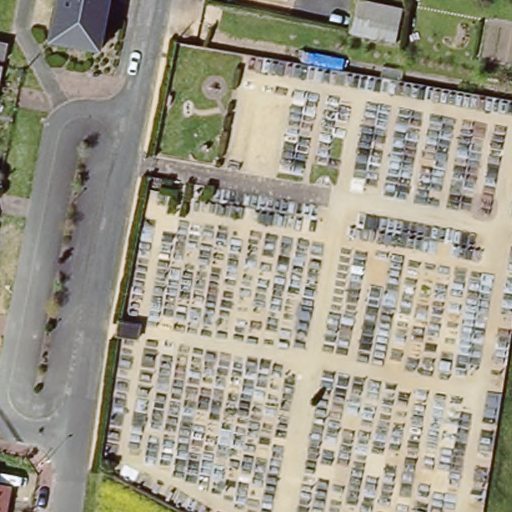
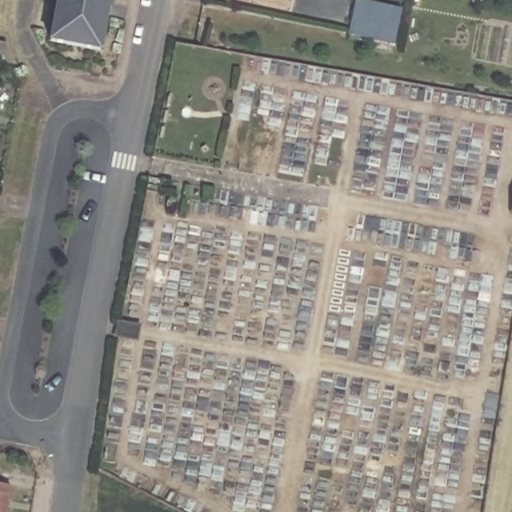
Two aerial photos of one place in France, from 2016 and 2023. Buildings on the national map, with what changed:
unchanged [(54,34),(61,0),(111,0),(110,4),(107,16),(101,50),(53,40),(54,34)]
unchanged [(403,4),(402,6),(397,45),(345,36),(353,0),(371,0),(403,4)]
unchanged [(5,61),(0,60),(0,42),(8,44),(5,61)]
unchanged [(0,85),(0,67),(3,67),(0,85)]
unchanged [(120,325),(123,325),(142,328),(140,340),(122,338),(118,337),(120,325)]

